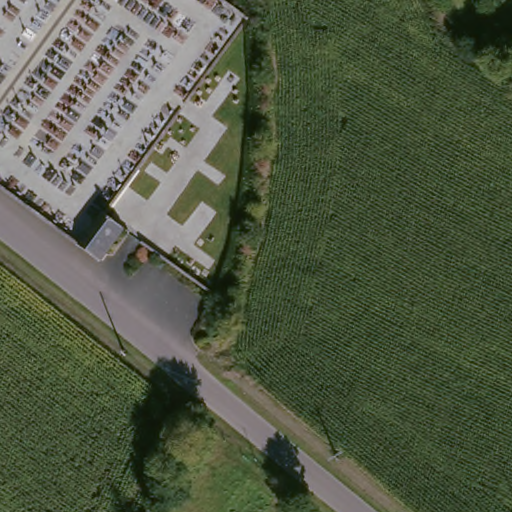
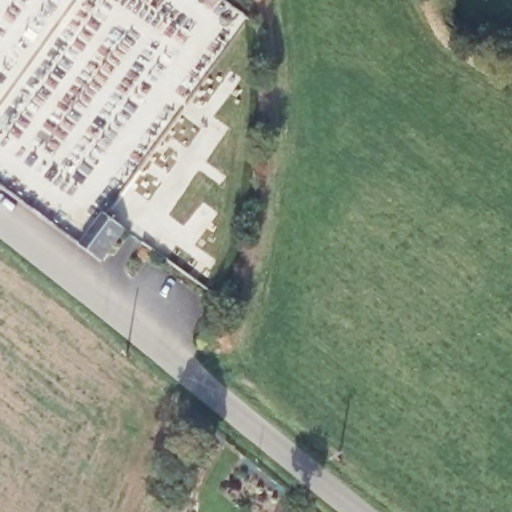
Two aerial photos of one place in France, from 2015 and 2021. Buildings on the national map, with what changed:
unchanged [(105,263),(79,244),(105,215),(124,230),(129,235),(105,263)]

